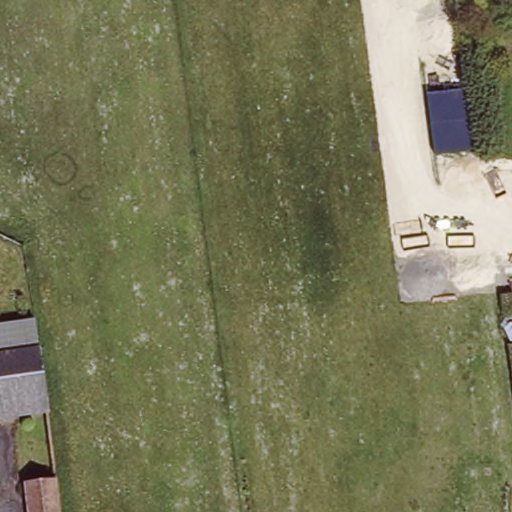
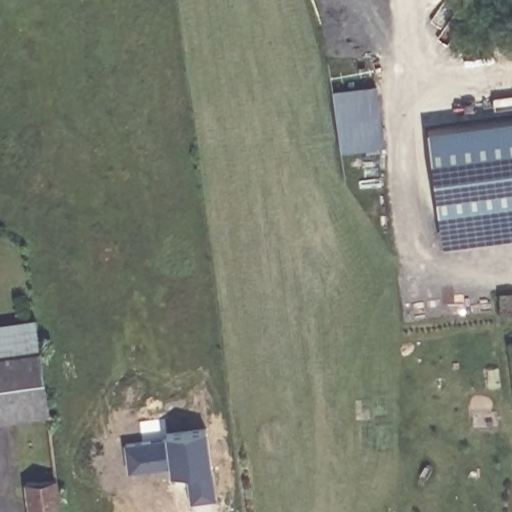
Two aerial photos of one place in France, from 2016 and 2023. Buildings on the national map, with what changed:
new [(376,83),(384,145),(341,150),(333,89),(376,83)]
new [(512,237),(443,245),(428,128),(512,118),(512,237)]
unchanged [(45,344),(0,350),(0,321),(41,315),(45,344)]
demolished [(512,317),(512,343),(506,344),(500,318),(512,317)]
unchanged [(53,412),(0,419),(0,350),(45,344),(53,412)]
unchanged [(55,472),(60,512),(30,512),(24,477),(55,472)]

